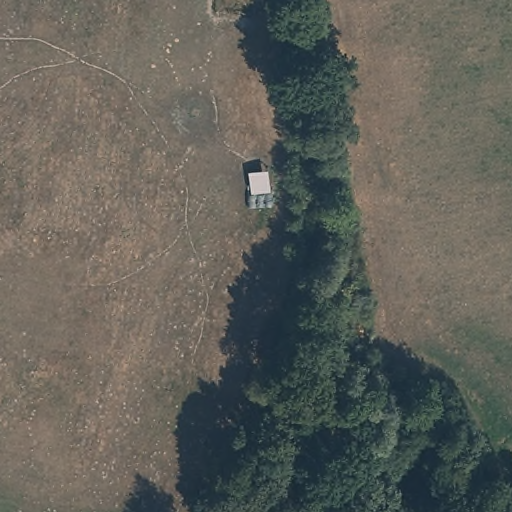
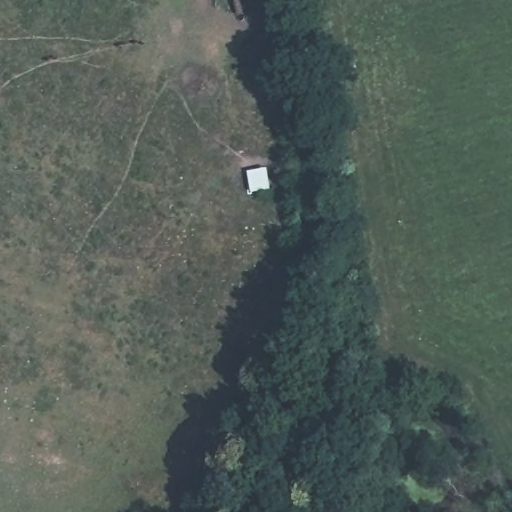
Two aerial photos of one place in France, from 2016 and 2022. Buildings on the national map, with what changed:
unchanged [(251,167),(271,168),(271,189),(250,189),(251,167)]

